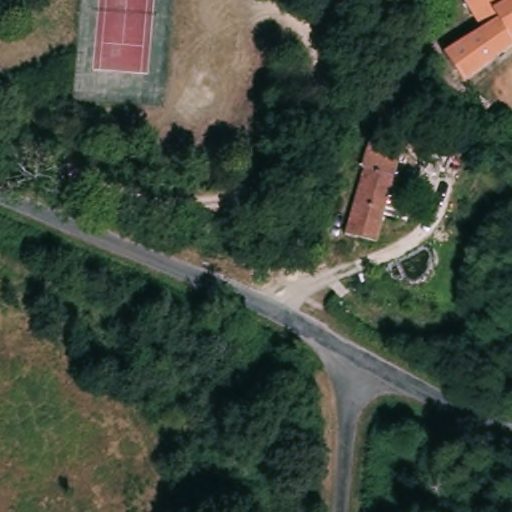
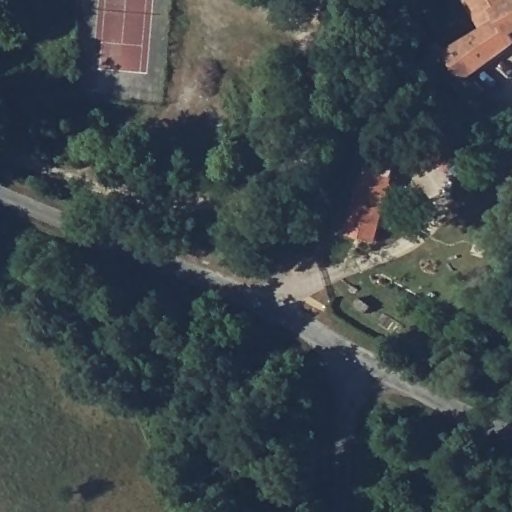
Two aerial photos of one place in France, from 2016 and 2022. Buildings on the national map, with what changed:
unchanged [(446,51),(479,26),(468,2),(471,0),(510,0),(512,0),(512,47),(463,82),(461,80),(446,51)]
unchanged [(367,169),(364,167),(372,140),(404,151),(396,177),(375,242),(347,234),(367,169)]
unchanged [(396,222),(404,234),(391,240),(386,230),(396,222)]

